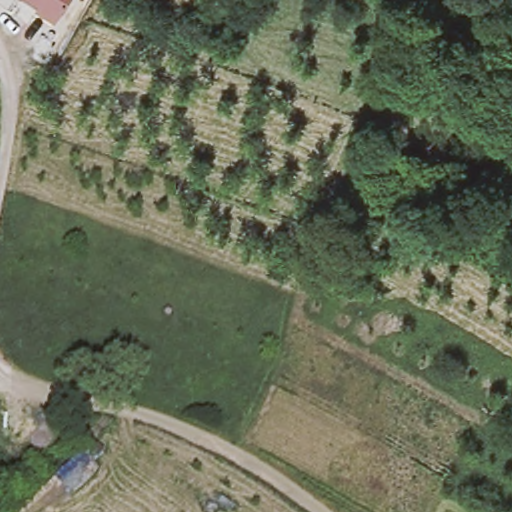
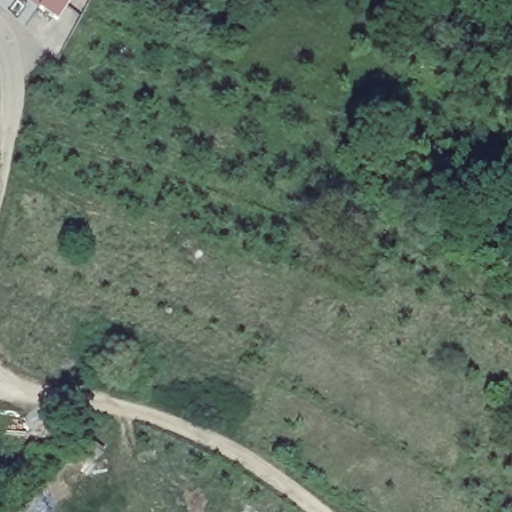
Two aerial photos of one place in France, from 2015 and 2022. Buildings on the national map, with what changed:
unchanged [(39,8),(27,0),(71,0),(58,20),(39,8)]

